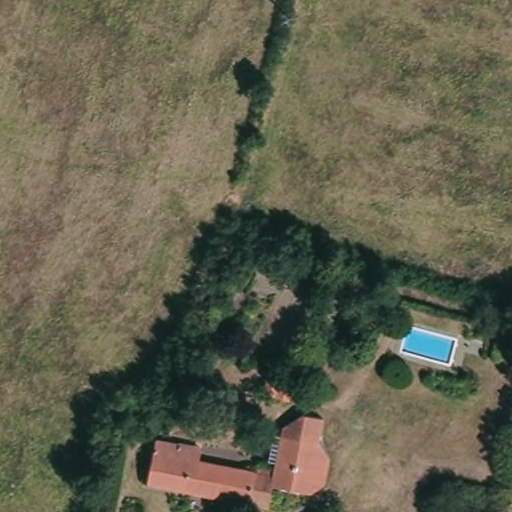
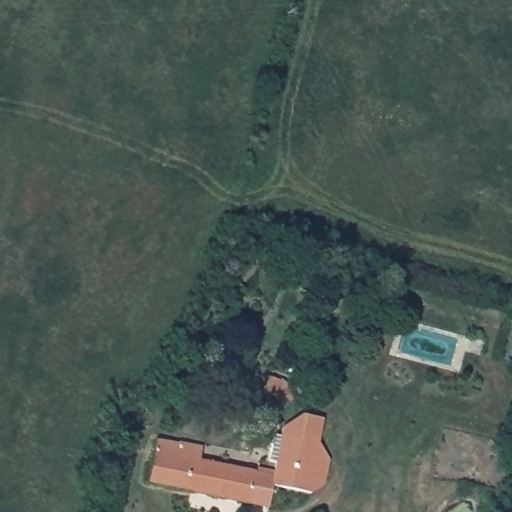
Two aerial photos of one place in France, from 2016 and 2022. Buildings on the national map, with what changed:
unchanged [(266,374),(289,380),(284,398),(263,391),(266,374)]
unchanged [(317,487),(277,480),(278,474),(282,462),(270,461),(276,435),(283,437),(287,418),(295,419),(312,410),(328,415),(326,425),(342,451),(335,481),(317,487)]
unchanged [(277,480),(269,506),(137,479),(146,439),(167,443),(165,453),(278,474),(277,480)]

